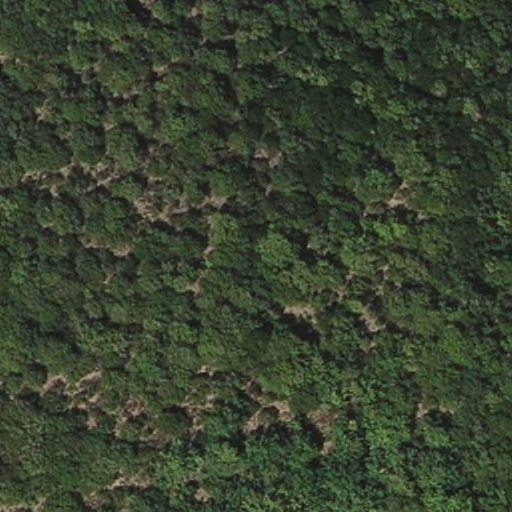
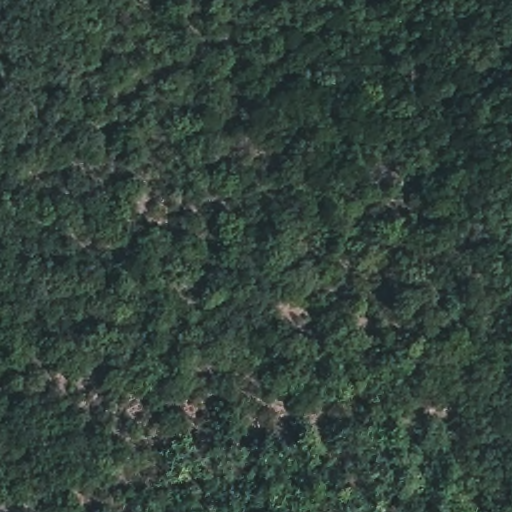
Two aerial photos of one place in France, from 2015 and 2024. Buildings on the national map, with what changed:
unchanged [(4,115),(0,117),(0,107),(4,115)]

